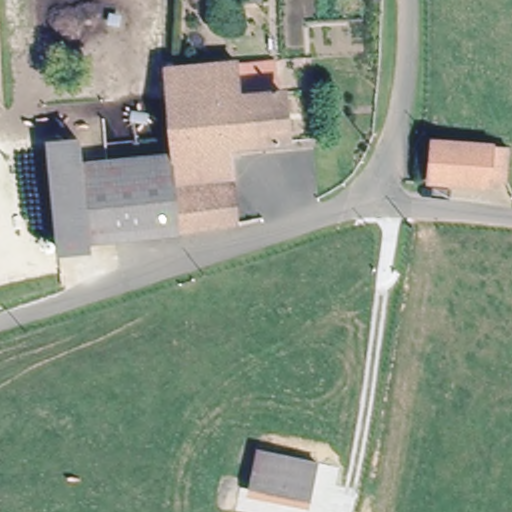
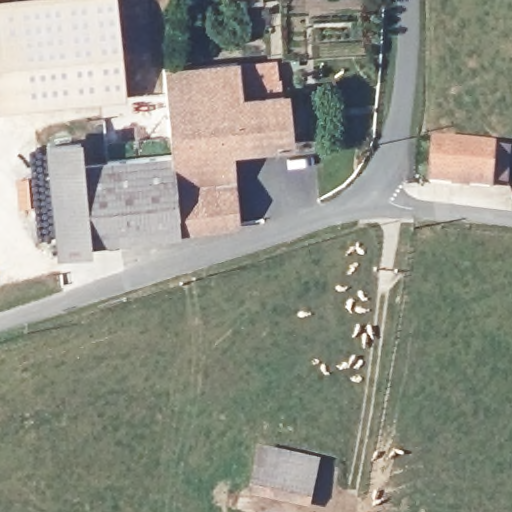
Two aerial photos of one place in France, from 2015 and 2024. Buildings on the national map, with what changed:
new [(0,0),(117,0),(126,97),(0,110),(0,0)]
unchanged [(277,55),(281,85),(242,87),(237,60),(277,55)]
unchanged [(235,56),(237,60),(242,87),(240,87),(234,142),(226,144),(170,150),(170,148),(162,64),(235,56)]
unchanged [(242,87),(276,86),(281,85),(286,137),(234,142),(240,87),(242,87)]
unchanged [(88,244),(57,247),(46,137),(77,135),(80,157),(170,148),(170,150),(174,181),(229,174),(233,219),(177,225),(87,235),(88,244)]
unchanged [(508,180),(492,179),(492,185),(432,181),(435,140),(510,146),(508,180)]
unchanged [(226,144),(229,174),(174,181),(170,150),(226,144)]
unchanged [(247,491),(256,447),(314,459),(306,502),(247,491)]

